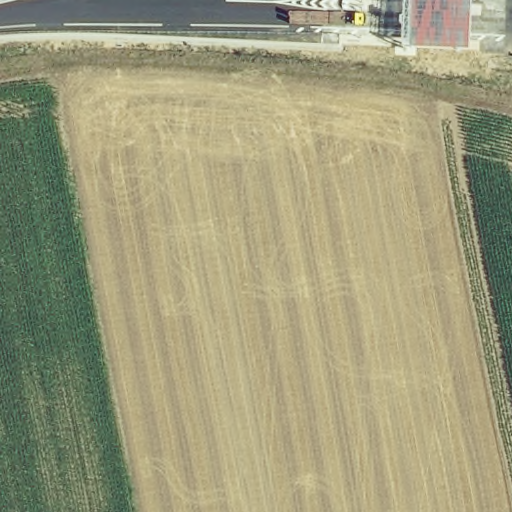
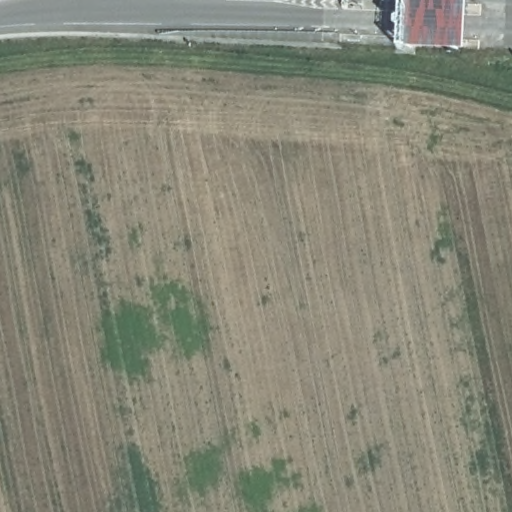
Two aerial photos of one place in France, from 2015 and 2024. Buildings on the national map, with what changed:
unchanged [(405,0),(470,0),(469,50),(405,46),(405,0)]

